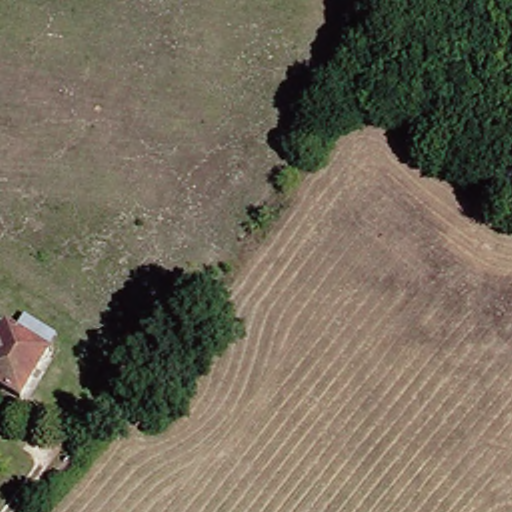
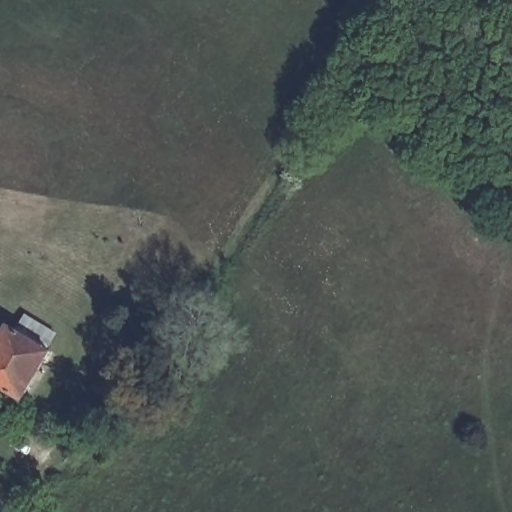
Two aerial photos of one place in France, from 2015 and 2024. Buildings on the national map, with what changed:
unchanged [(51,354),(25,397),(0,382),(0,345),(10,330),(51,354)]

